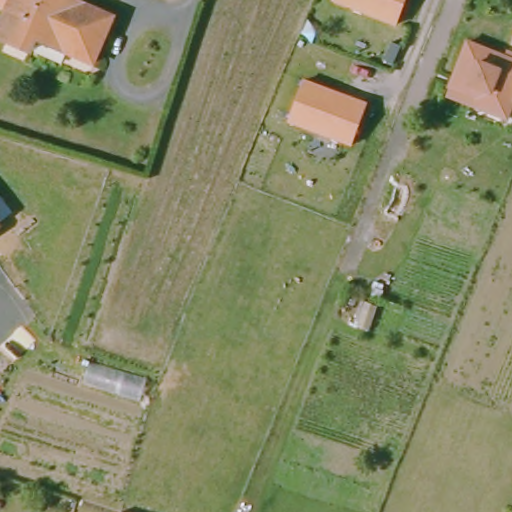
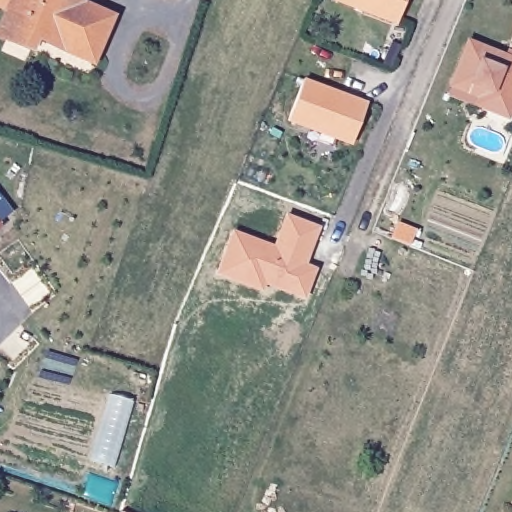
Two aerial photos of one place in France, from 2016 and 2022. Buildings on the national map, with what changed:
unchanged [(103,58),(32,35),(26,50),(2,42),(18,0),(81,0),(119,11),(103,58)]
unchanged [(336,0),(409,0),(399,26),(336,2),(336,0)]
unchanged [(475,100),(447,90),(451,80),(465,44),(502,60),(505,55),(512,57),(512,62),(512,64),(512,104),(504,121),(481,113),(472,110),(475,100)]
unchanged [(290,124),(304,82),(368,106),(354,146),(290,124)]
new [(0,227),(0,189),(19,210),(0,227)]
new [(234,232),(275,248),(287,216),(318,228),(304,265),(315,270),(305,297),(264,282),(261,290),(218,273),(234,232)]
new [(0,227),(0,222),(2,225),(0,227)]

